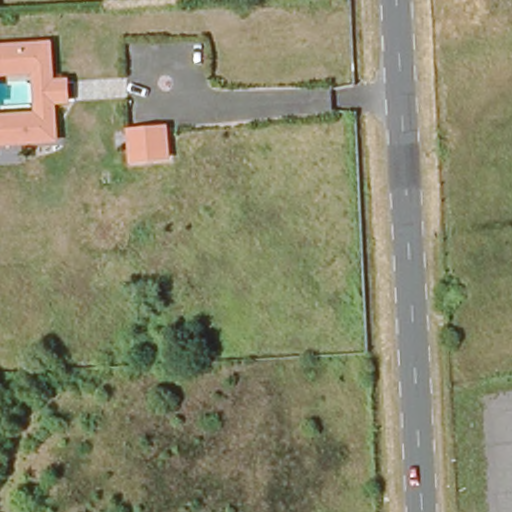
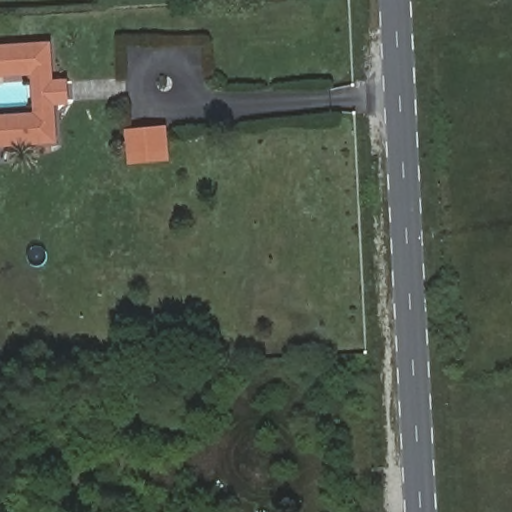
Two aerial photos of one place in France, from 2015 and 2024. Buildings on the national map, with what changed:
unchanged [(51,80),(66,79),(68,98),(53,99),(55,137),(0,140),(0,45),(49,42),(51,80)]
unchanged [(164,127),(166,148),(154,148),(155,156),(139,158),(135,130),(164,127)]

